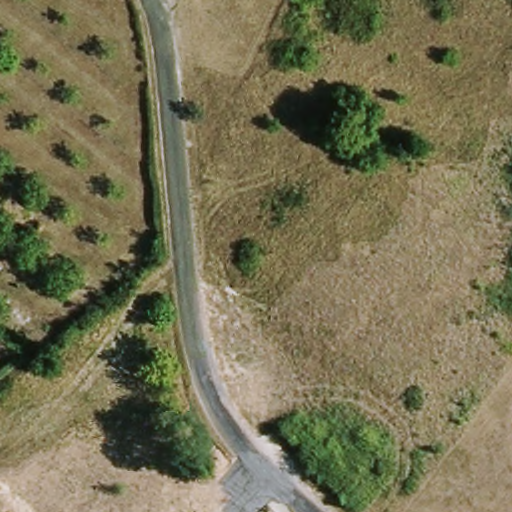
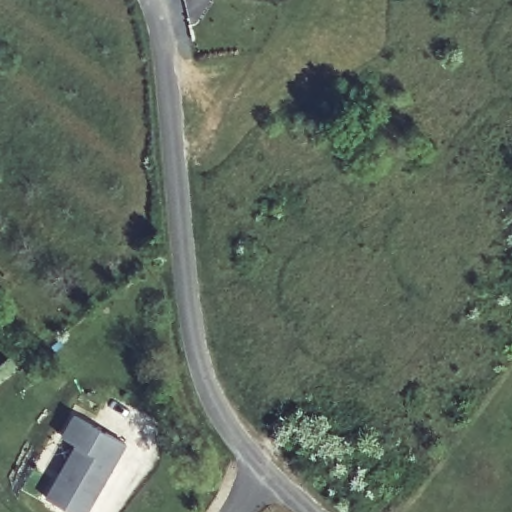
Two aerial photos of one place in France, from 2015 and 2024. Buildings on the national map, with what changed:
new [(90,512),(73,512),(46,497),(77,445),(62,437),(74,416),(127,444),(90,512)]

